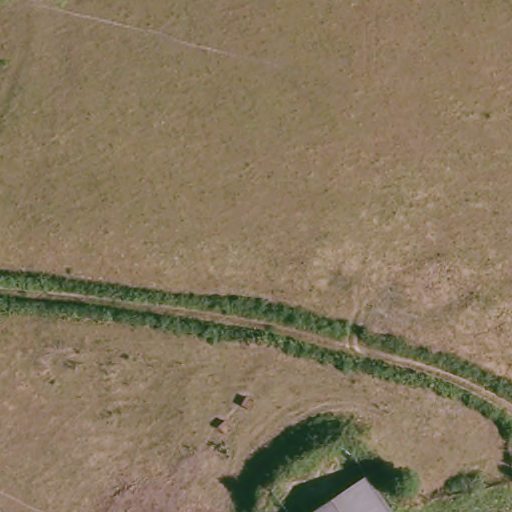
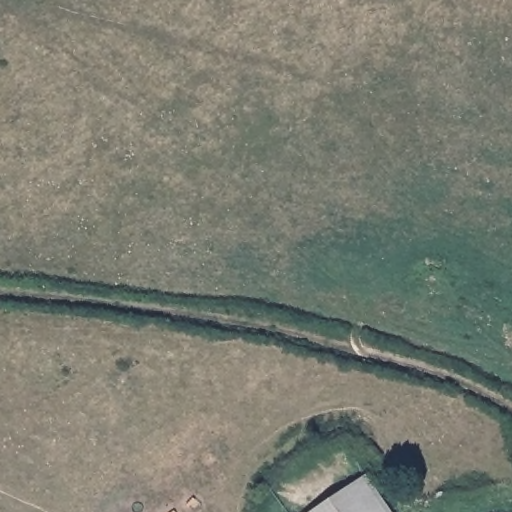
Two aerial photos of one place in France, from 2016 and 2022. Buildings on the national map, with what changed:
unchanged [(397,512),(322,512),(373,476),(397,512)]

